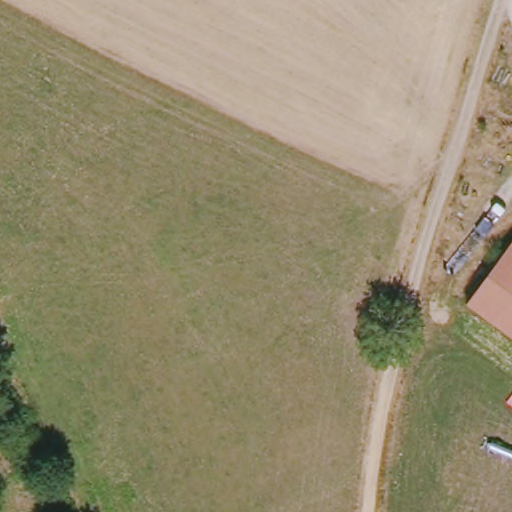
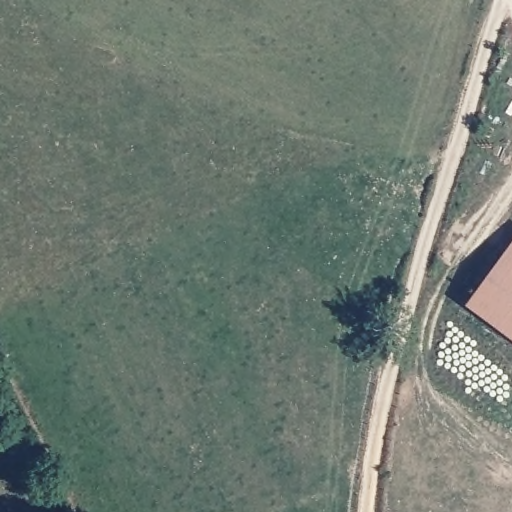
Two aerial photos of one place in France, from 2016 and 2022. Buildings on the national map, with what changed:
unchanged [(512,244),(512,339),(465,305),(512,244)]

